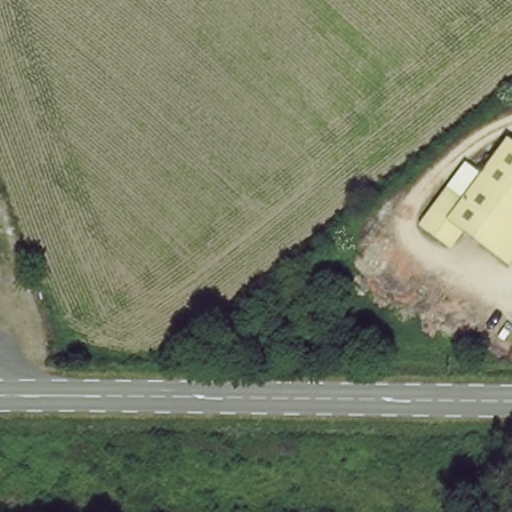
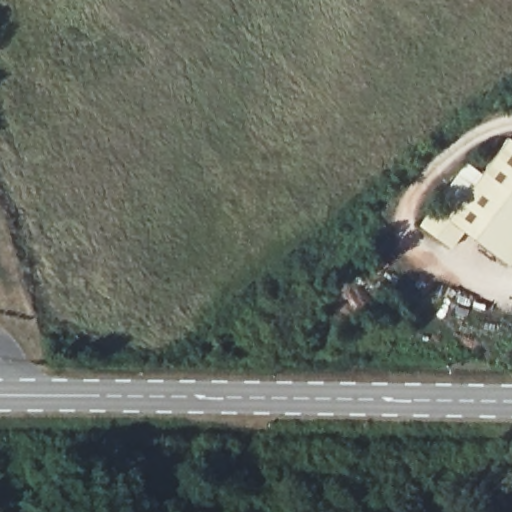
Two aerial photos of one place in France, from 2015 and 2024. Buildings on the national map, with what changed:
unchanged [(462,199),(475,179),(505,136),(512,141),(512,263),(468,236),(453,256),(416,232),(448,188),(462,199)]

